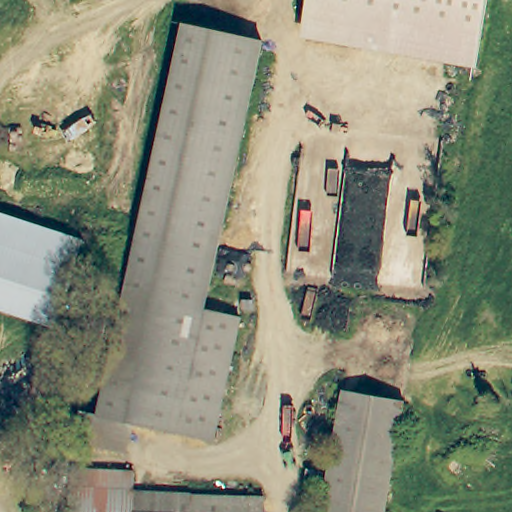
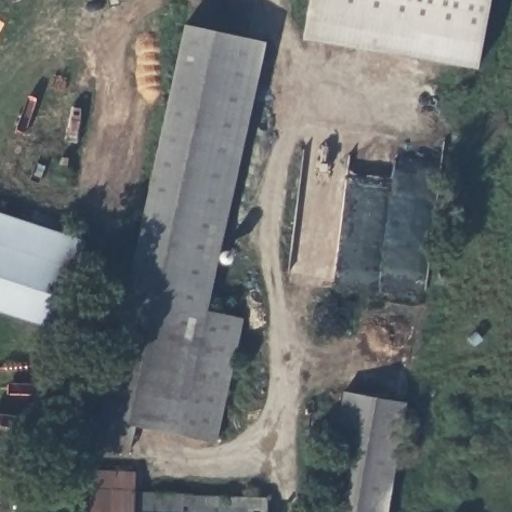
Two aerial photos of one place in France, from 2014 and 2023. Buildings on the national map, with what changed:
unchanged [(479,46),(306,14),(308,0),(487,0),(479,46)]
unchanged [(97,417),(98,415),(183,24),(263,42),(203,310),(241,320),(213,442),(133,425),(97,417)]
unchanged [(51,327),(0,312),(0,217),(78,242),(51,327)]
unchanged [(401,408),(383,512),(318,512),(338,396),(401,408)]
unchanged [(133,425),(126,453),(75,442),(82,411),(98,415),(97,417),(133,425)]
unchanged [(131,477),(131,497),(130,512),(68,512),(70,475),(131,477)]
unchanged [(263,512),(130,512),(131,497),(263,502),(263,512)]

